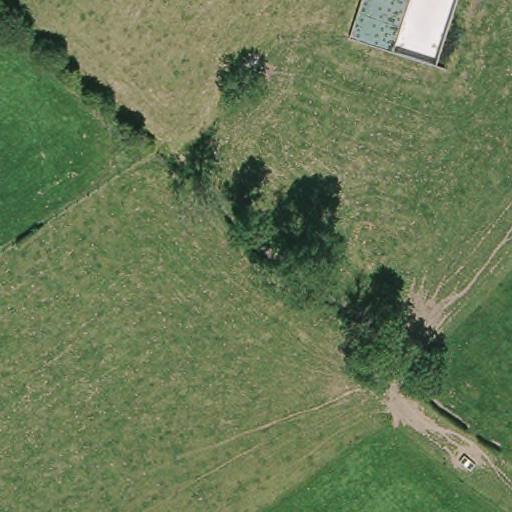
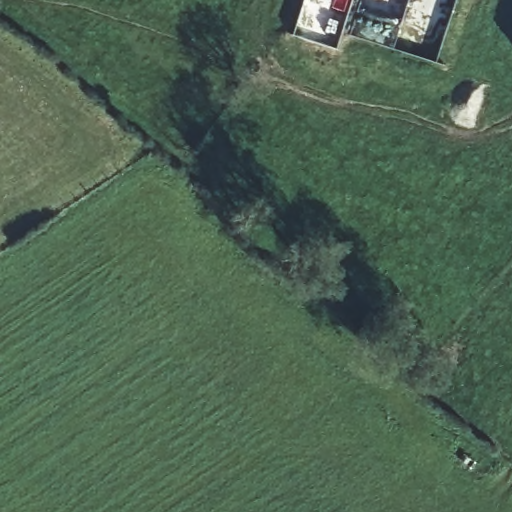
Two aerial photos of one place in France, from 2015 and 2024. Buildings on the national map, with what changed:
[]

